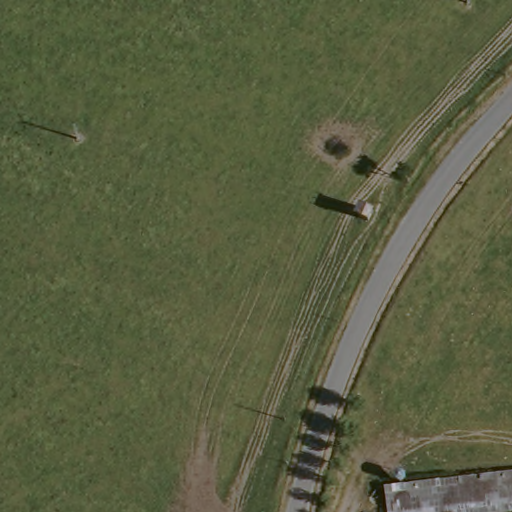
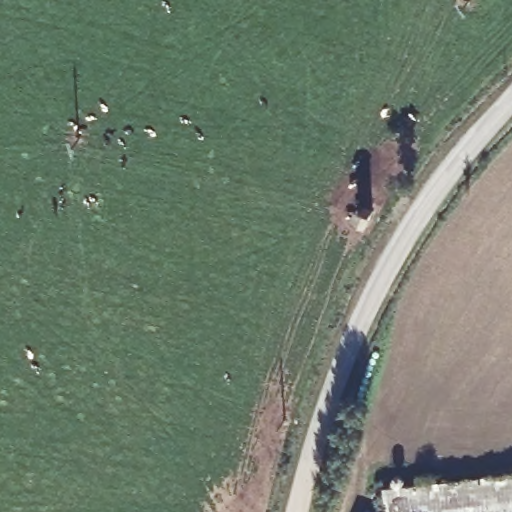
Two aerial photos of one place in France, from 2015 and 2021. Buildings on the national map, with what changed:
unchanged [(512,512),(387,512),(384,496),(512,477),(512,512)]

